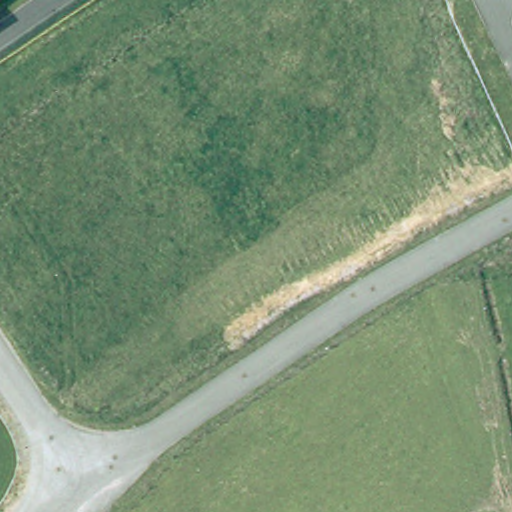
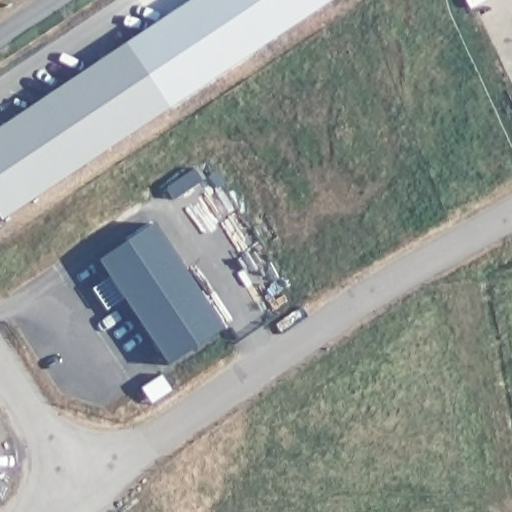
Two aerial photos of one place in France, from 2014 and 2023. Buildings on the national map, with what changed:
unchanged [(0,1),(0,0),(2,0),(0,1)]
new [(189,0),(334,0),(169,110),(123,44),(189,0)]
new [(123,44),(169,110),(0,221),(0,220),(0,125),(123,44)]
new [(152,222),(221,327),(166,364),(96,258),(152,222)]

